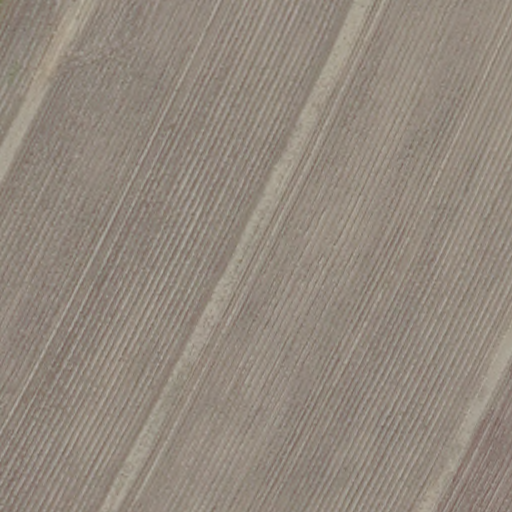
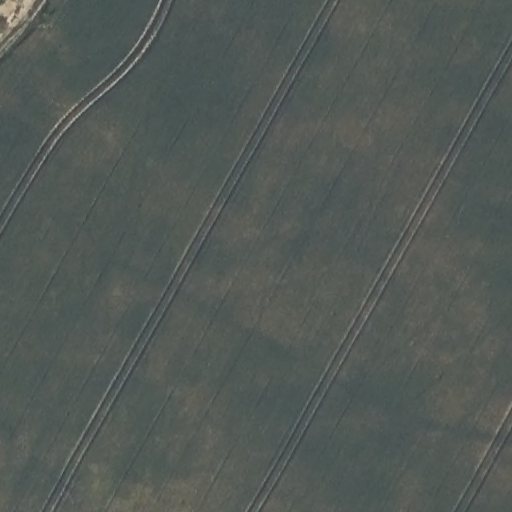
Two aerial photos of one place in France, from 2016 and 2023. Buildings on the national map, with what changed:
[]

